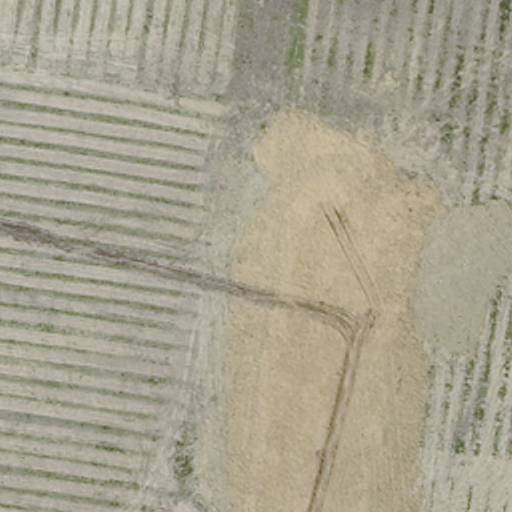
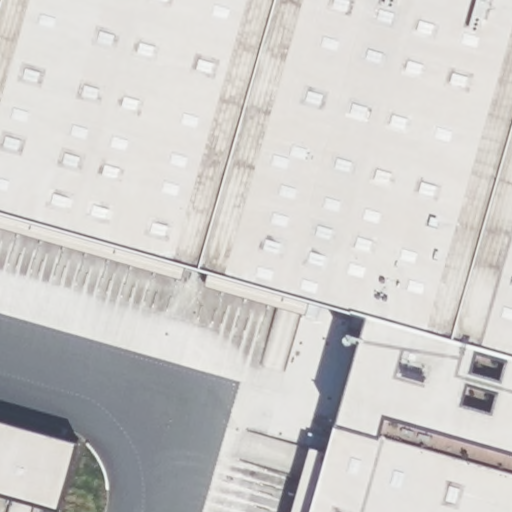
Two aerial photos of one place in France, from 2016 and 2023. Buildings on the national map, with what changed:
new [(310,512),(336,419),(366,310),(0,207),(0,0),(512,0),(512,512),(310,512)]
demolished [(432,139),(428,154),(410,150),(414,135),(432,139)]
new [(62,512),(38,505),(0,494),(0,419),(82,442),(62,512)]

